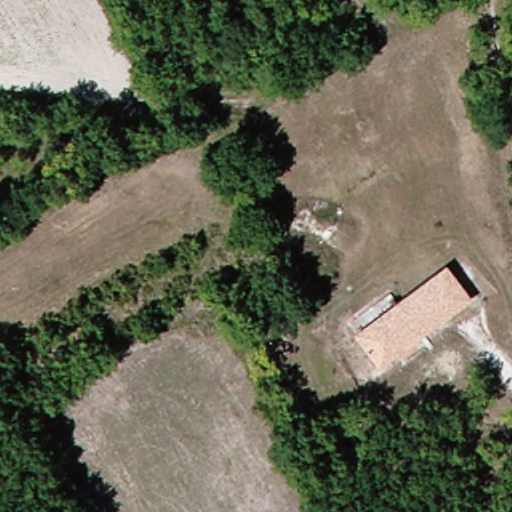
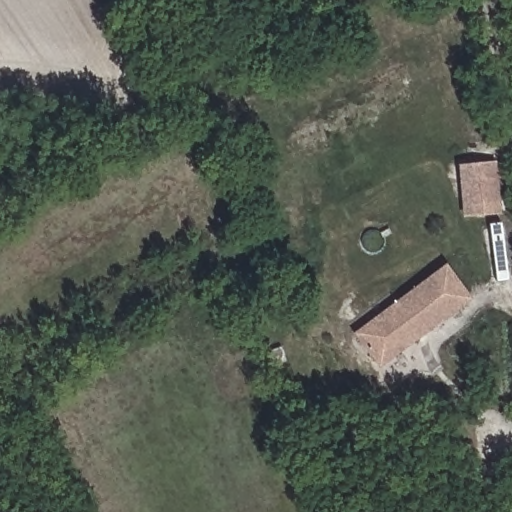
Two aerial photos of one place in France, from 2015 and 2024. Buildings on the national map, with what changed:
new [(502,214),(464,218),(459,165),(497,161),(502,214)]
unchanged [(378,366),(353,331),(447,262),(472,297),(378,366)]

